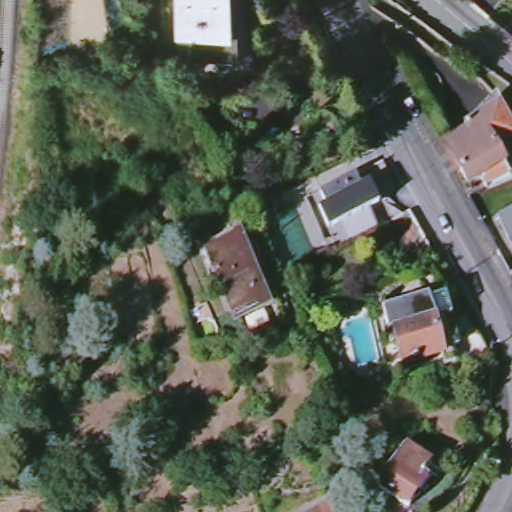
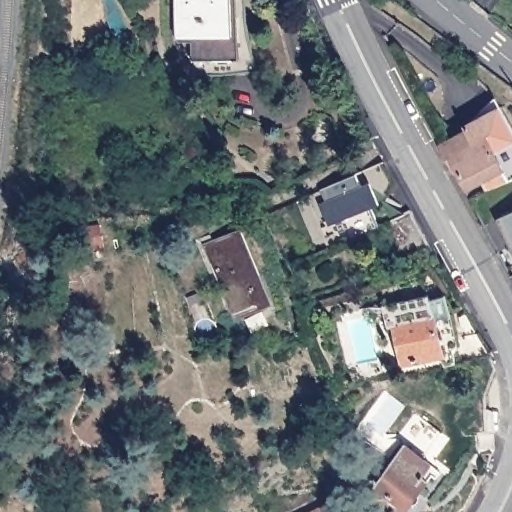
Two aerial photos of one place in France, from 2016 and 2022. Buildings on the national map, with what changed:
unchanged [(225,73),(225,57),(197,56),(197,34),(182,33),(182,0),(235,0),(235,12),(250,13),(251,23),(255,39),(257,52),(260,60),(262,65),(225,73)]
unchanged [(467,130),(465,126),(500,108),(512,131),(512,179),(487,190),(482,179),(468,185),(461,168),(455,171),(441,144),(467,130)]
unchanged [(376,191),(366,207),(351,212),(360,231),(335,242),(327,224),(309,231),(300,210),(305,207),(300,195),(363,167),(376,191)]
unchanged [(512,209),(512,249),(496,215),(512,209)]
unchanged [(405,243),(374,254),(360,231),(391,217),(405,243)]
unchanged [(207,242),(240,227),(271,300),(238,315),(207,242)]
unchanged [(473,349),(467,351),(428,359),(426,348),(405,350),(405,354),(388,357),(380,318),(420,309),(415,292),(431,287),(437,306),(442,331),(462,328),(473,349)]
unchanged [(494,433),(495,448),(478,447),(477,433),(494,433)]
unchanged [(376,483),(405,444),(432,464),(423,476),(428,480),(407,507),(376,483)]
unchanged [(335,507),(346,501),(352,512),(280,512),(325,488),(335,507)]

